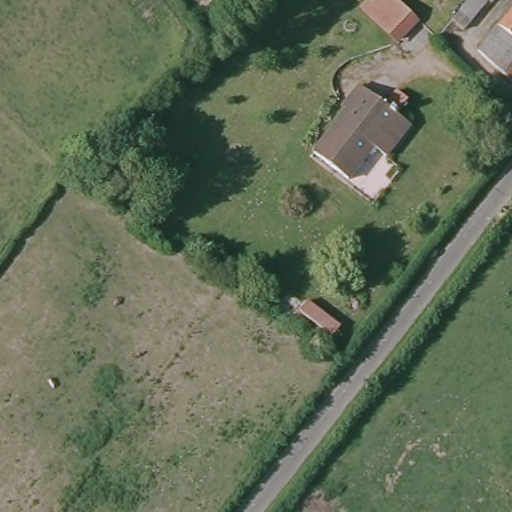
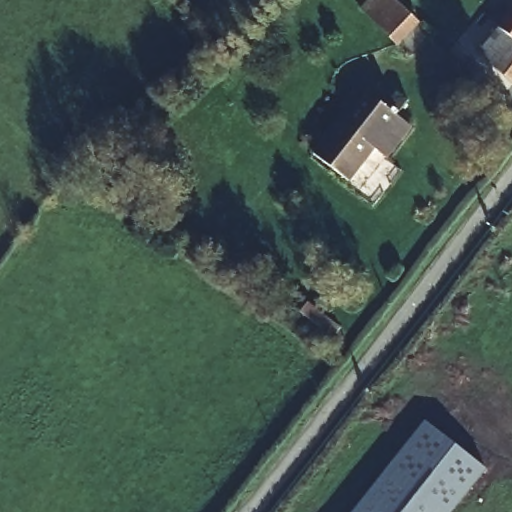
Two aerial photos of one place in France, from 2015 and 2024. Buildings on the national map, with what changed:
new [(360,9),(369,0),(398,0),(421,22),(398,46),(360,9)]
unchanged [(489,37),(512,8),(512,50),(509,54),(489,37)]
unchanged [(412,121),(387,154),(375,146),(349,178),(314,153),(356,97),(352,95),(361,83),(412,121)]
new [(425,420),(487,468),(452,512),(352,512),(425,420)]

